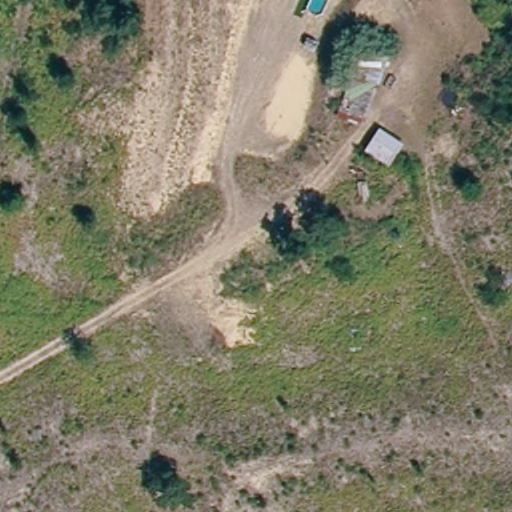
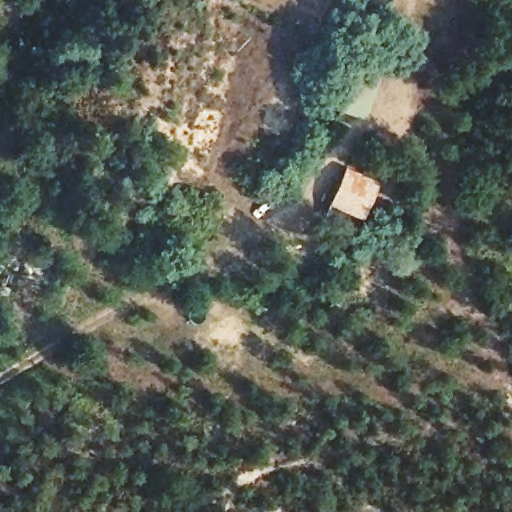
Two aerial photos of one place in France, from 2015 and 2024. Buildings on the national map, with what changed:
unchanged [(363,130),(336,120),(361,52),(388,60),(363,130)]
unchanged [(472,101),(463,109),(449,96),(457,87),(472,101)]
unchanged [(403,143),(388,167),(364,151),(379,127),(403,143)]
new [(376,180),(375,192),(362,219),(329,204),(346,167),(376,180)]

